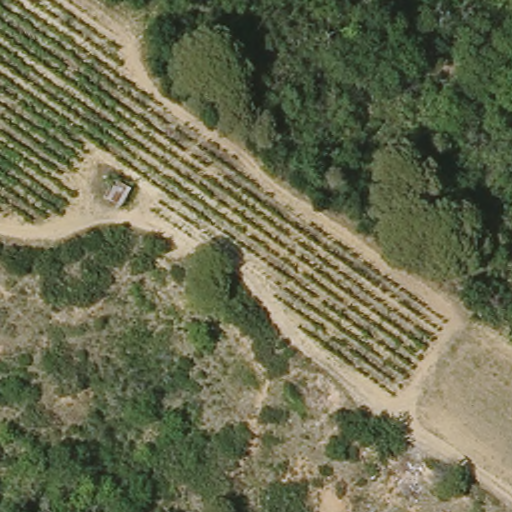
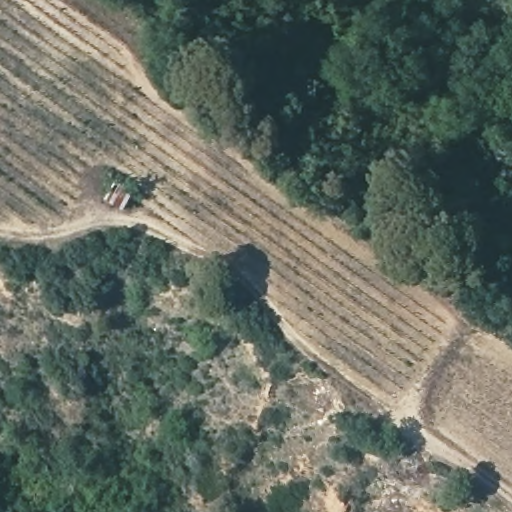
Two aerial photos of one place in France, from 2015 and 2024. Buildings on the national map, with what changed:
unchanged [(108,200),(119,179),(138,189),(126,211),(108,200)]

